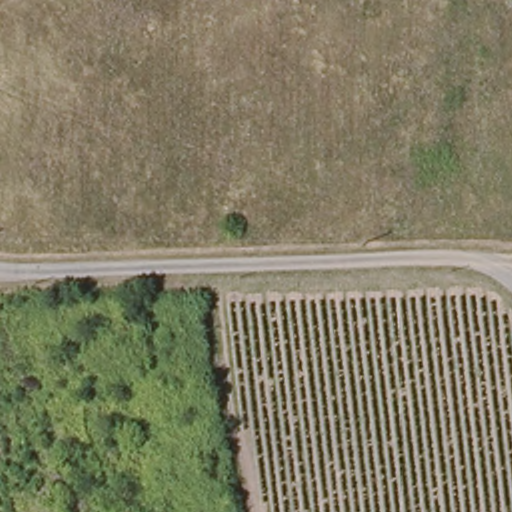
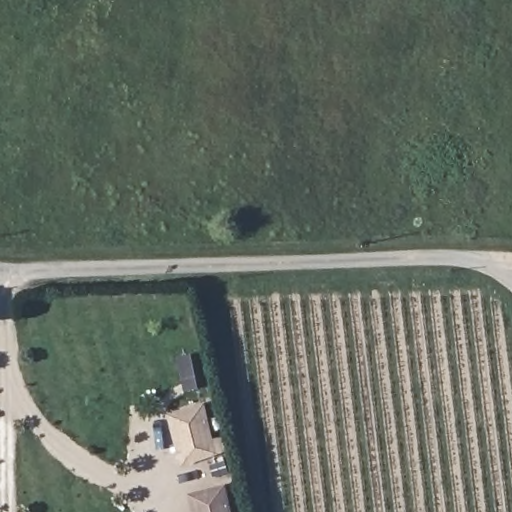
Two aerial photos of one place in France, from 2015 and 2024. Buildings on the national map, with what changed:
new [(195,398),(203,430),(221,426),(227,447),(173,461),(159,407),(195,398)]
new [(218,486),(226,512),(187,512),(182,495),(218,486)]

